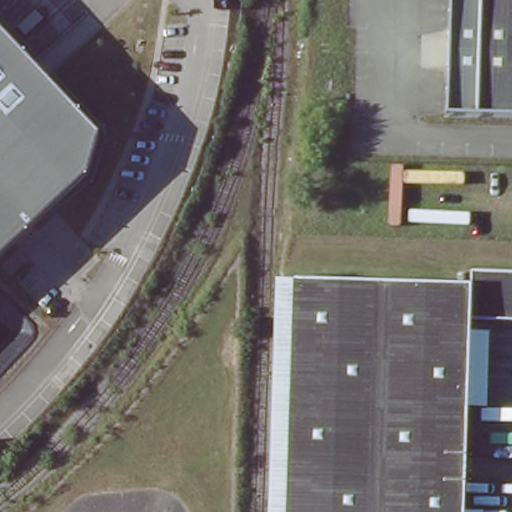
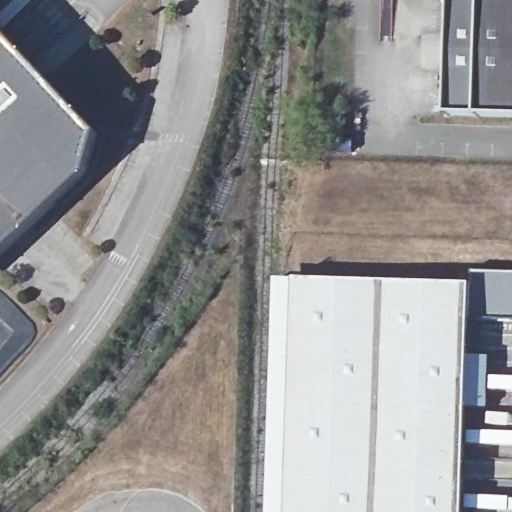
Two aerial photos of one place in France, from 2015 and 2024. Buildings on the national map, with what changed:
unchanged [(477,0),(512,0),(512,112),(476,112),(477,0)]
unchanged [(97,133),(90,175),(0,259),(0,31),(97,133)]
unchanged [(465,285),(465,271),(512,273),(512,321),(465,320),(459,512),(281,512),(288,280),(465,285)]

